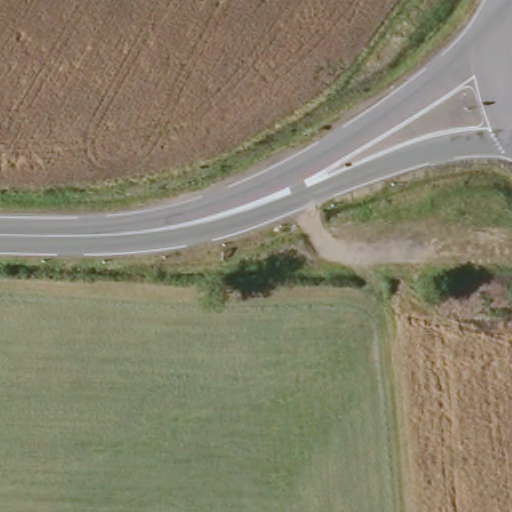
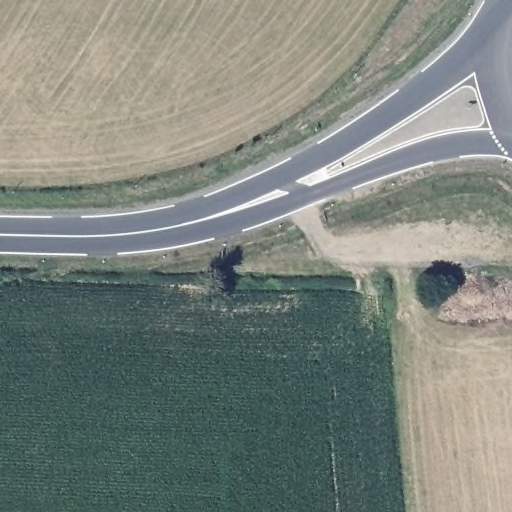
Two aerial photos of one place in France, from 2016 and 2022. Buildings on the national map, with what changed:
unchanged [(213,292),(202,292),(201,280),(214,280),(213,292)]

